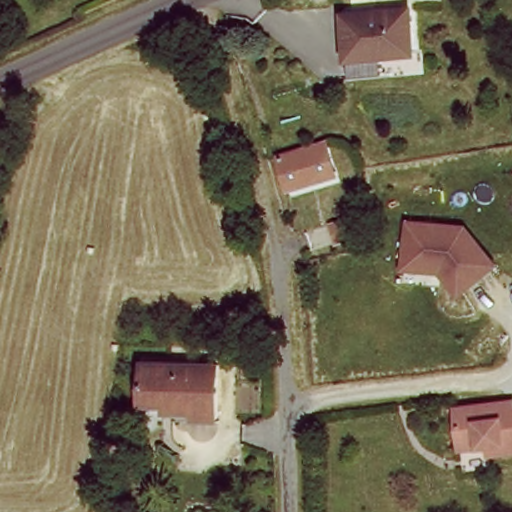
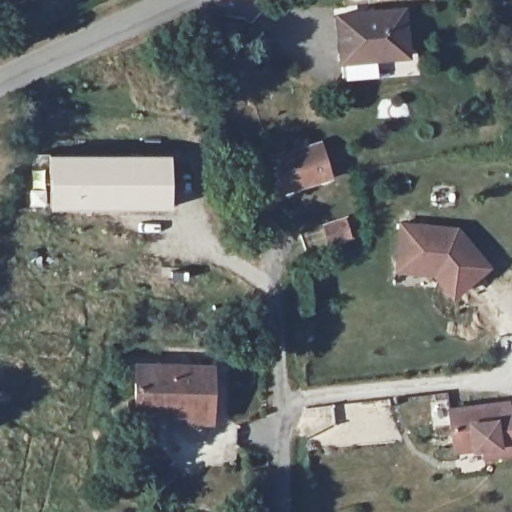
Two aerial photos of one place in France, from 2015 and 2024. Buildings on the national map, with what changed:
unchanged [(406,0),(415,65),(342,75),(333,6),(379,0),(406,0)]
unchanged [(273,158),(321,146),(326,171),(301,177),(278,182),(278,181),(273,158)]
new [(178,153),(182,209),(48,207),(46,155),(178,153)]
unchanged [(346,221),(351,238),(331,245),(325,228),(346,221)]
unchanged [(453,228),(485,264),(450,295),(431,272),(431,265),(394,262),(397,223),(453,228)]
unchanged [(156,401),(136,400),(138,359),(213,367),(210,424),(170,420),(156,419),(156,401)]
unchanged [(480,452),(478,443),(451,447),(445,405),(503,400),(505,408),(512,408),(512,448),(480,452)]

